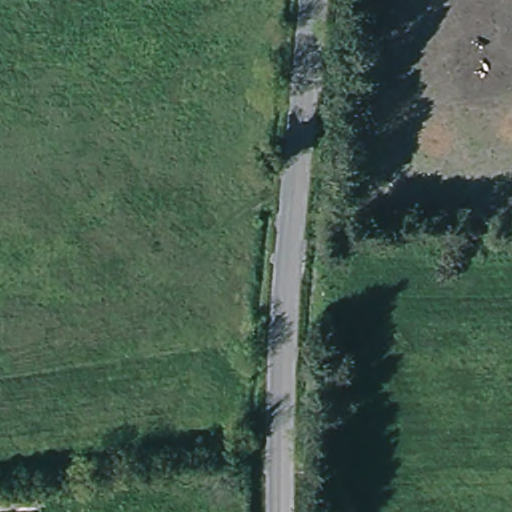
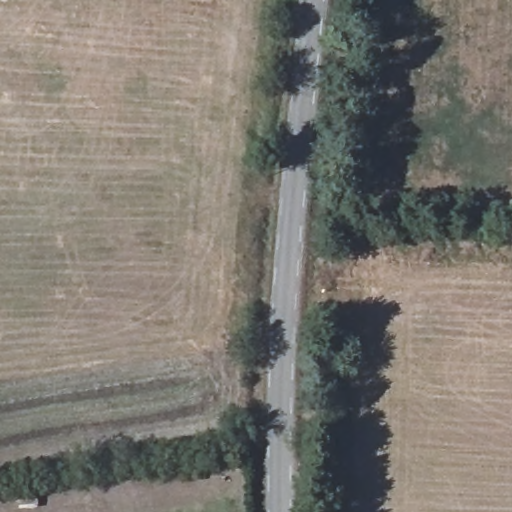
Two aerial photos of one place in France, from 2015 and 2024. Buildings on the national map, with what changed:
[]

